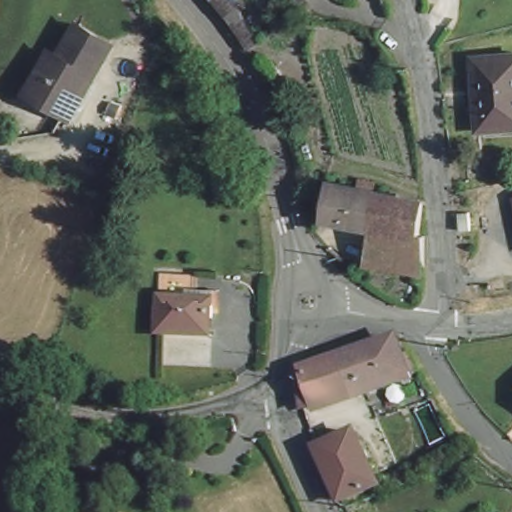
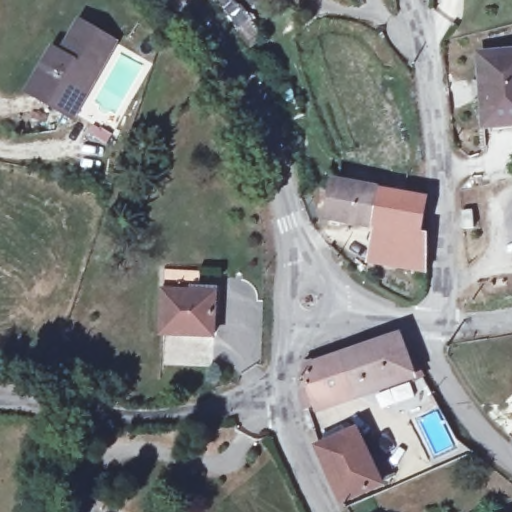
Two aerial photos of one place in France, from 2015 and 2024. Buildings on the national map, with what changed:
unchanged [(266,31),(246,44),(213,0),(242,0),(266,31)]
unchanged [(63,109),(35,92),(26,86),(37,70),(50,48),(59,53),(78,22),(113,45),(91,79),(70,114),(63,109)]
unchanged [(485,58),(512,56),(512,123),(486,124),(485,58)]
unchanged [(378,228),(331,221),(331,211),(324,209),(326,194),(334,194),(335,187),(360,191),(361,181),(376,182),(375,193),(427,202),(422,235),(378,228)]
unchanged [(464,217),(463,200),(473,199),(474,216),(464,217)]
unchanged [(422,235),(428,236),(427,272),(376,265),(378,228),(422,235)]
unchanged [(216,293),(215,335),(163,333),(163,292),(181,292),(181,287),(198,287),(198,292),(216,293)]
unchanged [(401,335),(409,368),(306,404),(302,386),(309,381),(308,370),(401,335)]
unchanged [(383,486),(345,502),(318,447),(357,432),(383,486)]

